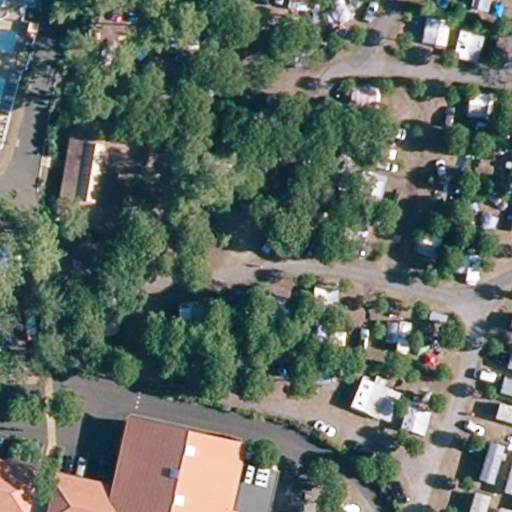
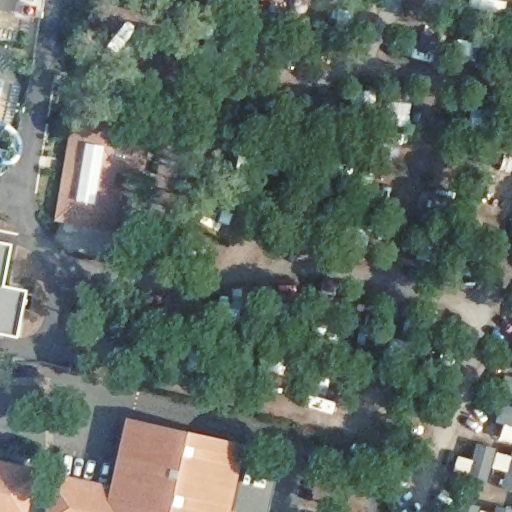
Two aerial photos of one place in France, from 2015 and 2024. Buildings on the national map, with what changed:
unchanged [(111,224),(99,222),(56,216),(72,122),(142,134),(136,171),(109,167),(105,186),(117,189),(111,224)]
new [(1,285),(25,290),(14,337),(0,334),(0,241),(11,243),(1,285)]
unchanged [(127,416),(247,441),(232,509),(241,510),(240,512),(47,512),(55,469),(113,481),(127,416)]
unchanged [(28,512),(0,512),(0,455),(39,463),(28,512)]

